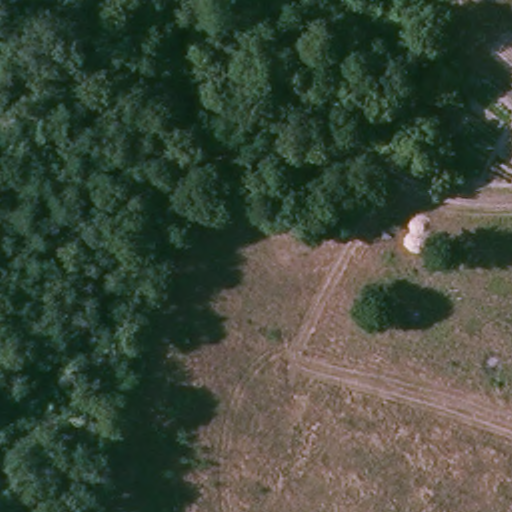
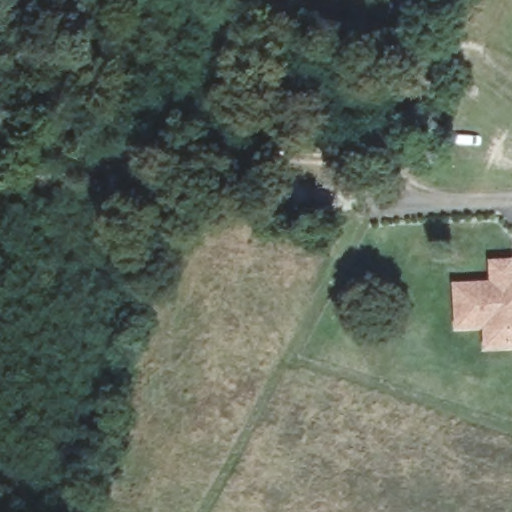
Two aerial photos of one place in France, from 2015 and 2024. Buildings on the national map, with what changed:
new [(456,324),(453,283),(491,280),(489,259),(511,258),(512,272),(512,343),(505,343),(485,344),(484,323),(456,324)]

